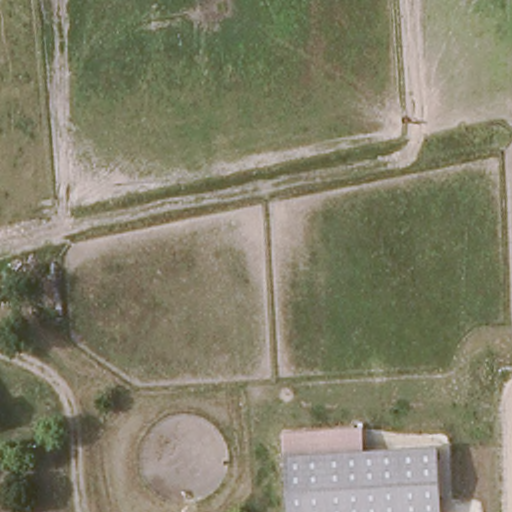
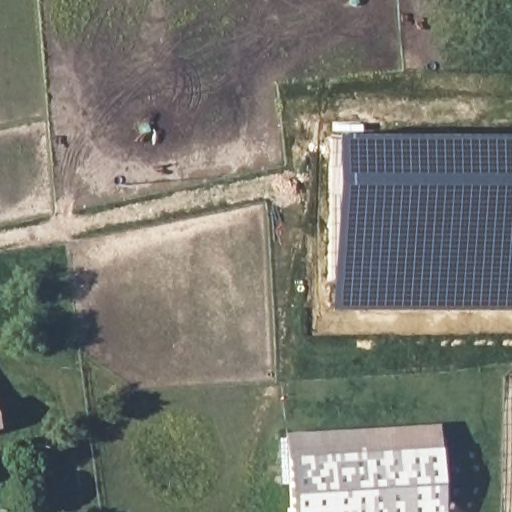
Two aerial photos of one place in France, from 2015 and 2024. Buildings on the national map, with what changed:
new [(326,308),(329,133),(512,133),(512,309),(326,308)]
unchanged [(290,449),(440,445),(443,512),(293,512),(290,449)]

